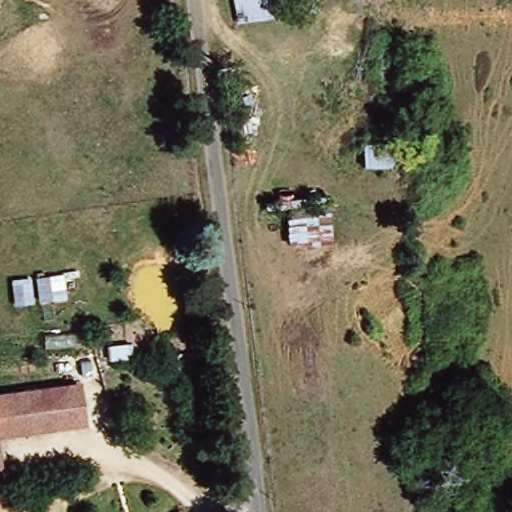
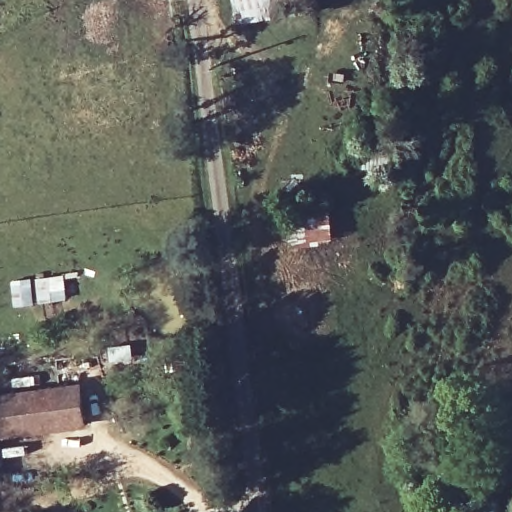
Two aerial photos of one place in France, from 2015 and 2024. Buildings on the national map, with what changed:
unchanged [(319,12),(238,21),(235,0),(317,0),(319,12)]
unchanged [(287,249),(284,207),(329,206),(332,245),(287,249)]
unchanged [(0,395),(80,391),(82,431),(0,435),(0,395)]

